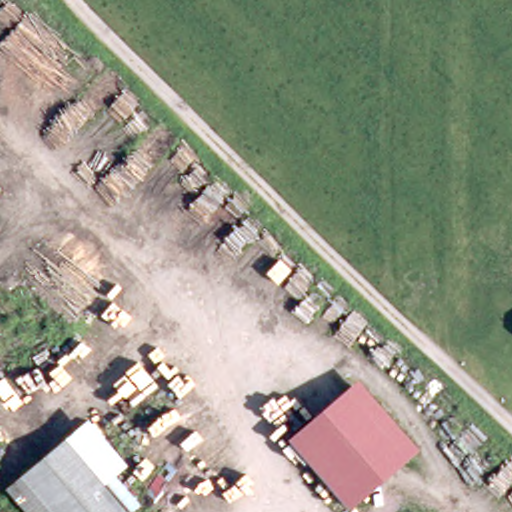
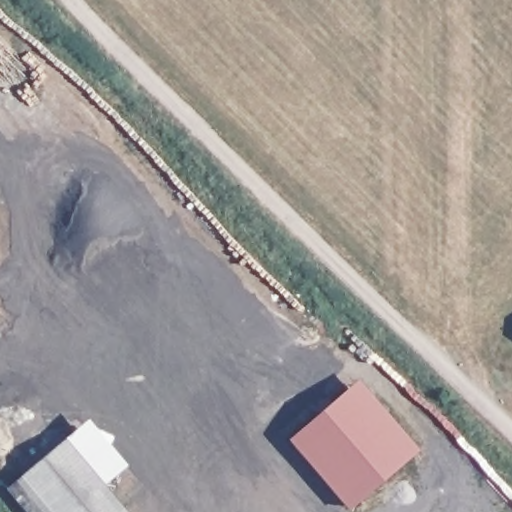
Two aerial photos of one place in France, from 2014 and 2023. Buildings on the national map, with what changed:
unchanged [(351,504),(292,435),(321,410),(349,386),(360,377),(419,446),(409,455),(387,474),(351,504)]
unchanged [(3,486),(58,440),(63,435),(85,417),(124,463),(103,481),(129,512),(26,512),(3,486)]

